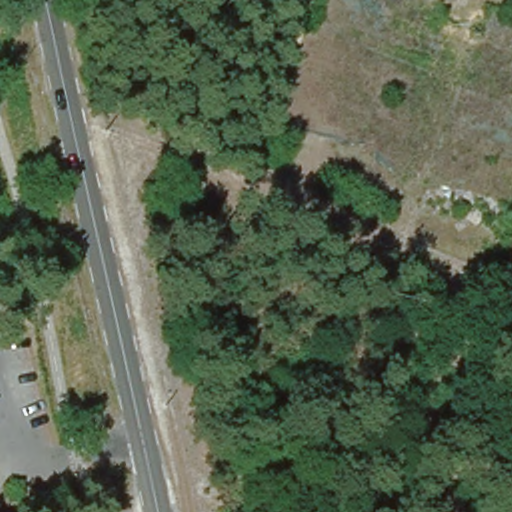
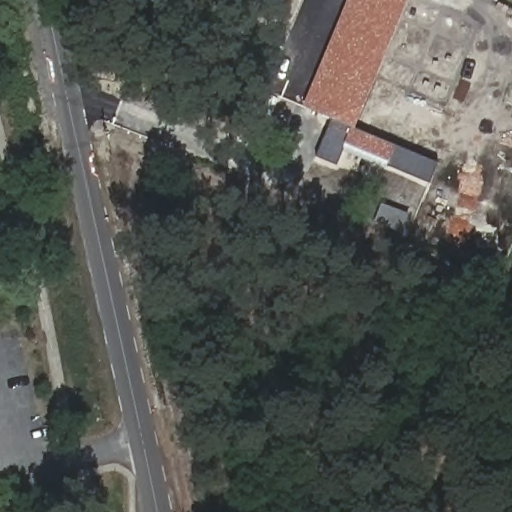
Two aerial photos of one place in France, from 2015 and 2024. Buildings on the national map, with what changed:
new [(408,0),(355,128),(438,162),(430,183),(388,165),(386,169),(343,150),(337,164),(317,156),(332,119),(302,106),(347,0),(408,0)]

